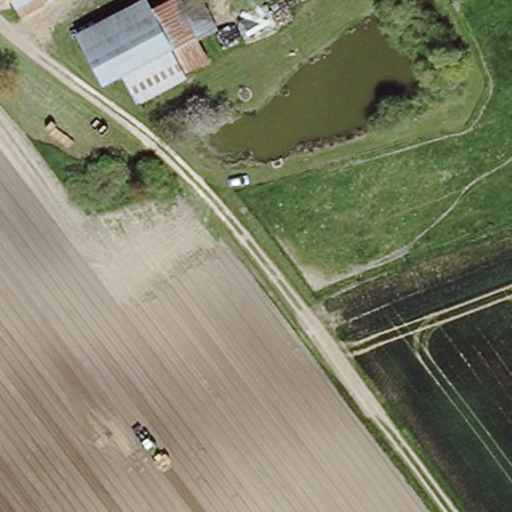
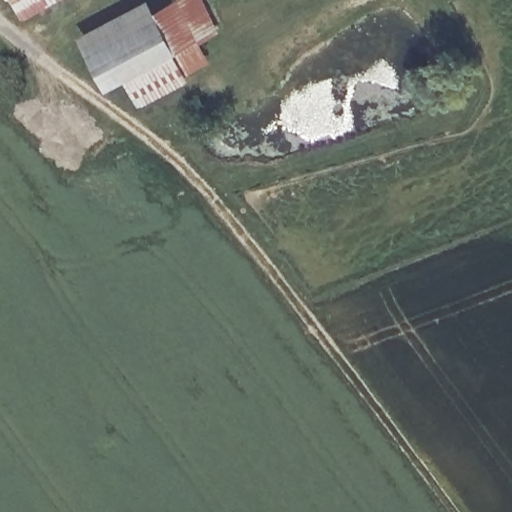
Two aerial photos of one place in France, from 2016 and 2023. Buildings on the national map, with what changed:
unchanged [(18,15),(10,0),(47,0),(18,15)]
unchanged [(160,2),(165,0),(204,0),(217,23),(202,31),(212,61),(141,102),(125,75),(106,83),(78,29),(132,0),(158,0),(160,2)]

